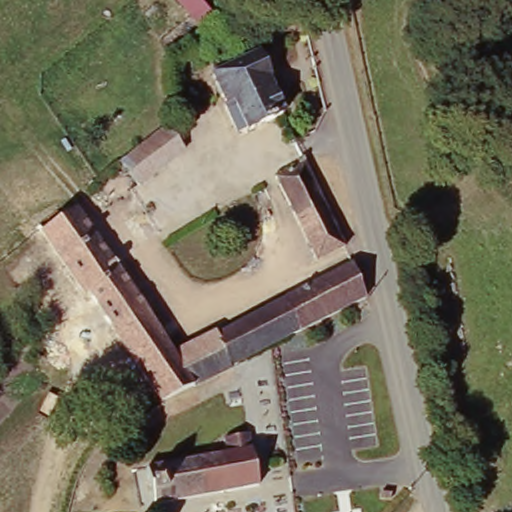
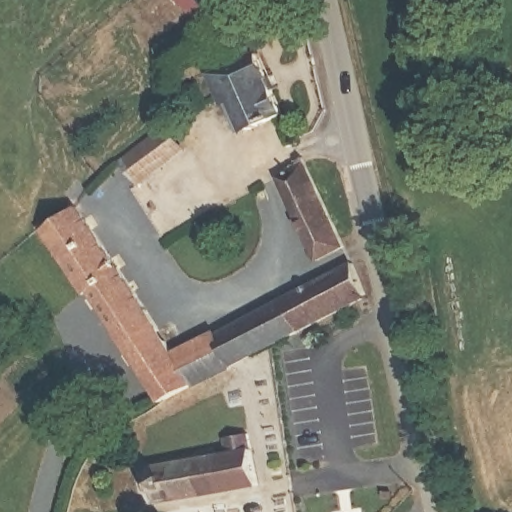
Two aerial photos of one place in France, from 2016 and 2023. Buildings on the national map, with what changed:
unchanged [(189,14),(194,7),(189,0),(184,5),(179,0),(207,0),(220,17),(205,32),(189,14)]
unchanged [(229,102),(222,104),(209,75),(258,54),(267,78),(261,80),(278,117),(243,133),(229,102)]
unchanged [(181,152),(132,187),(120,171),(114,162),(162,125),(181,152)]
unchanged [(269,176),(303,160),(345,246),(310,262),(269,176)]
unchanged [(113,264),(117,265),(172,348),(173,349),(192,379),(158,395),(154,392),(109,327),(110,323),(76,288),(34,226),(68,199),(70,204),(113,264)]
unchanged [(211,330),(290,294),(355,264),(372,299),(274,342),(230,363),(211,330)]
unchanged [(211,330),(230,363),(192,379),(173,349),(211,330)]
unchanged [(146,506),(139,468),(224,454),(221,436),(245,433),(256,488),(146,506)]

